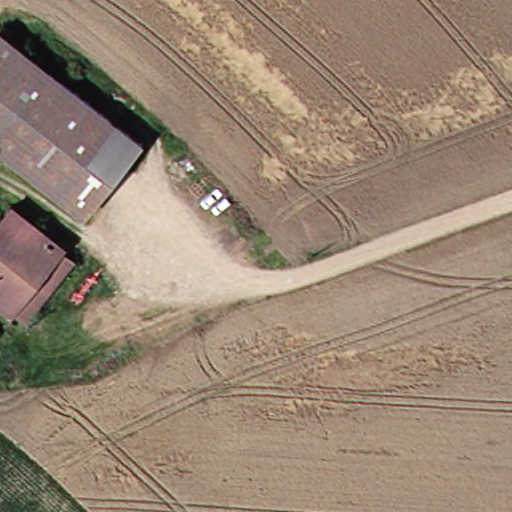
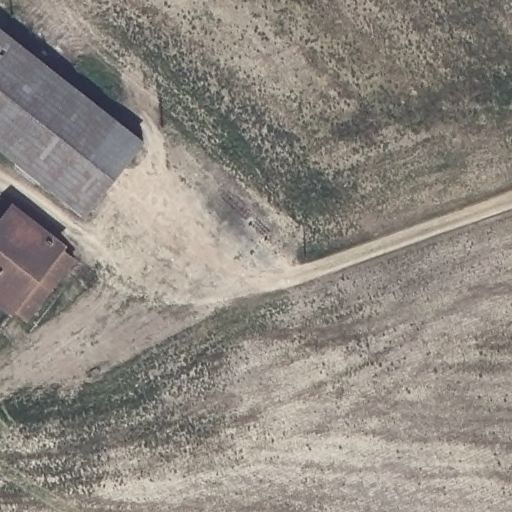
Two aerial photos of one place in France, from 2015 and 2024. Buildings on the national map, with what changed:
unchanged [(0,142),(0,40),(7,33),(120,128),(64,193),(0,142)]
unchanged [(145,148),(90,214),(64,193),(120,128),(145,148)]
unchanged [(0,298),(0,222),(12,205),(61,243),(15,309),(0,298)]
unchanged [(78,253),(29,320),(15,309),(61,243),(78,253)]

